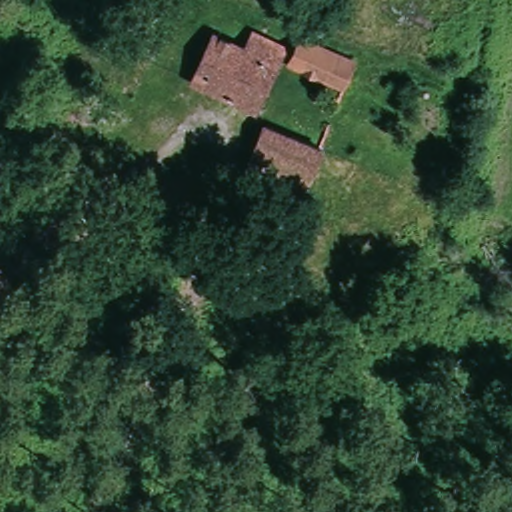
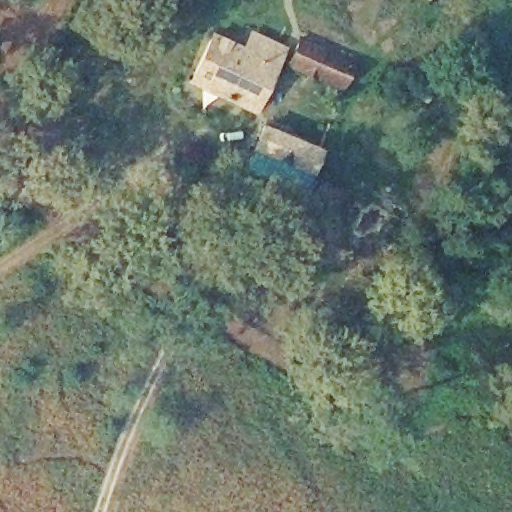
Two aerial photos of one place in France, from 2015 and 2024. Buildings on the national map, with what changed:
unchanged [(244,102),(193,78),(214,34),(242,46),(250,32),(284,50),(278,65),(258,110),(244,102)]
unchanged [(344,85),(327,77),(289,60),(301,35),(336,50),(354,59),(344,85)]
unchanged [(306,193),(248,168),(266,125),(323,149),(306,193)]

